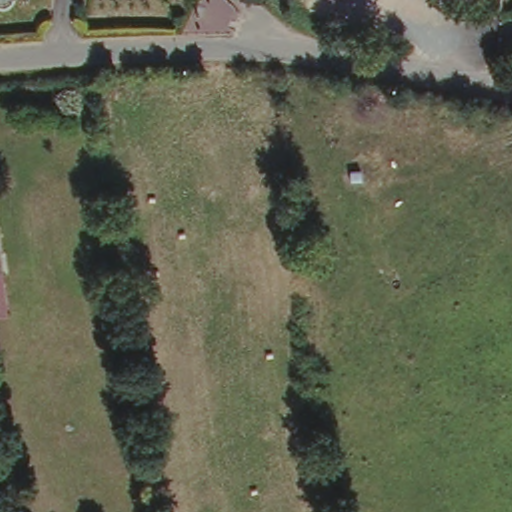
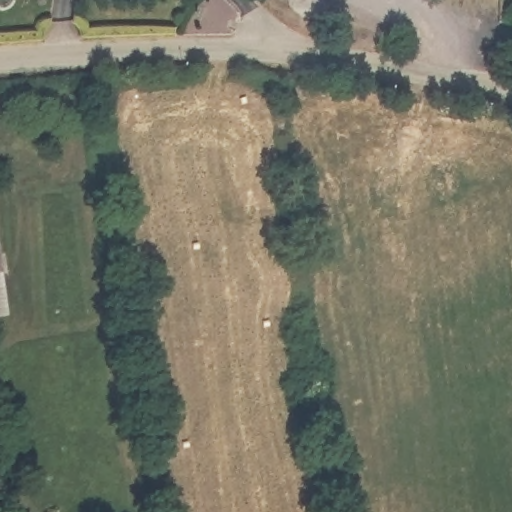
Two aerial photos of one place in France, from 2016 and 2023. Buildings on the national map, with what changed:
unchanged [(10,271),(0,272),(0,193),(2,193),(10,271)]

